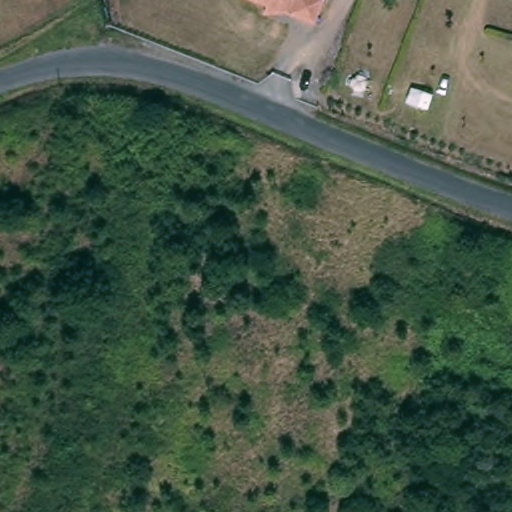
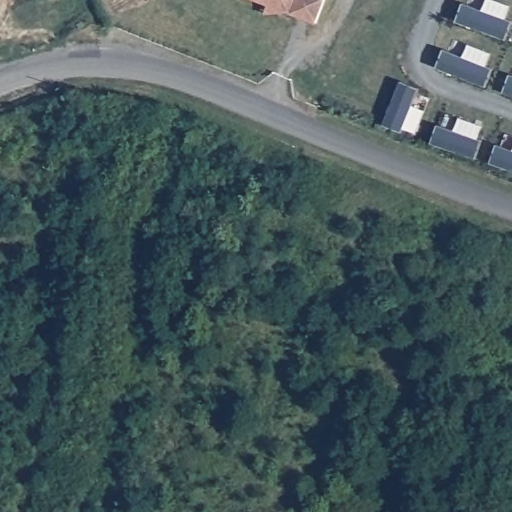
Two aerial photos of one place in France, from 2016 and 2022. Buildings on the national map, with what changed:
unchanged [(265,0),(330,0),(320,24),(265,0)]

